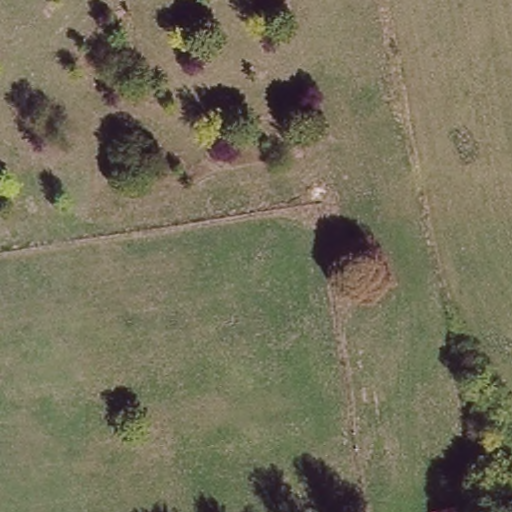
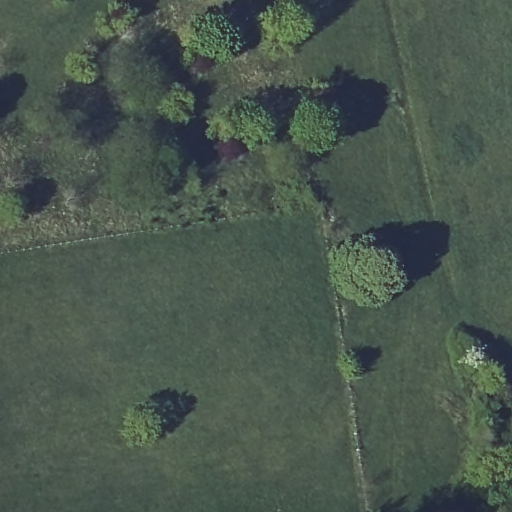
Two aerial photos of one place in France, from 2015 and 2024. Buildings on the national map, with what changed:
unchanged [(457,512),(445,512),(457,509),(457,512)]

